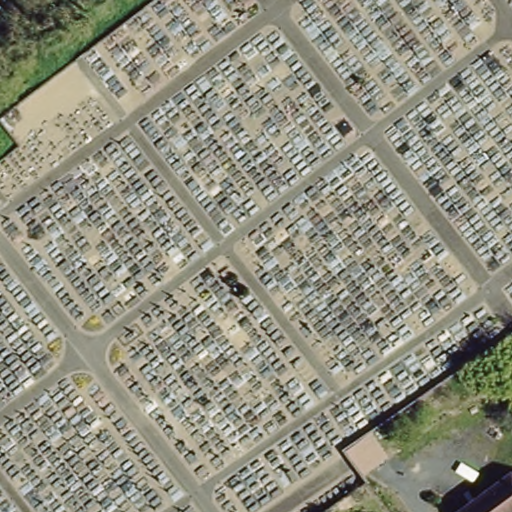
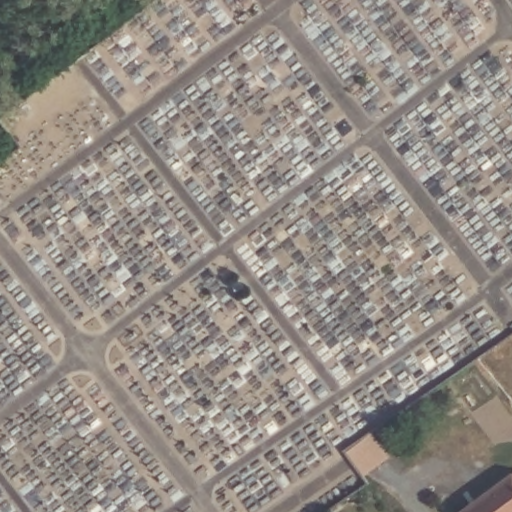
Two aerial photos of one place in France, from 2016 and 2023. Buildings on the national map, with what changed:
unchanged [(512,512),(454,512),(454,511),(512,474),(512,512)]

